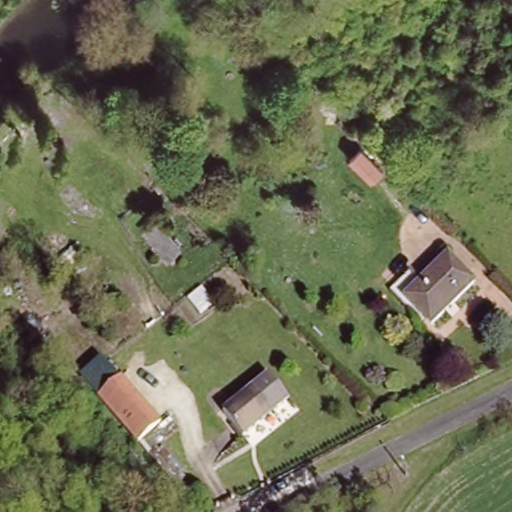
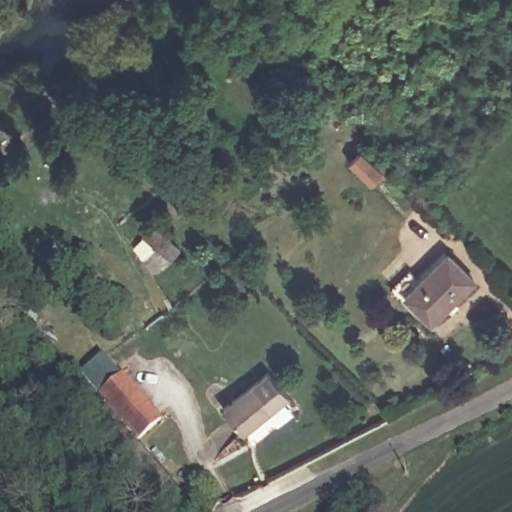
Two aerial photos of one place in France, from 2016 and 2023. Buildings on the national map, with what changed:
unchanged [(444,256),(472,280),(438,320),(410,295),(444,256)]
unchanged [(162,423),(140,443),(77,375),(102,356),(162,423)]
unchanged [(228,407),(270,370),(288,390),(247,428),(228,407)]

